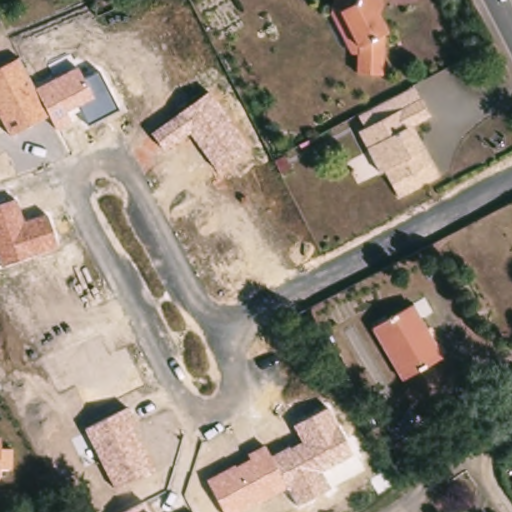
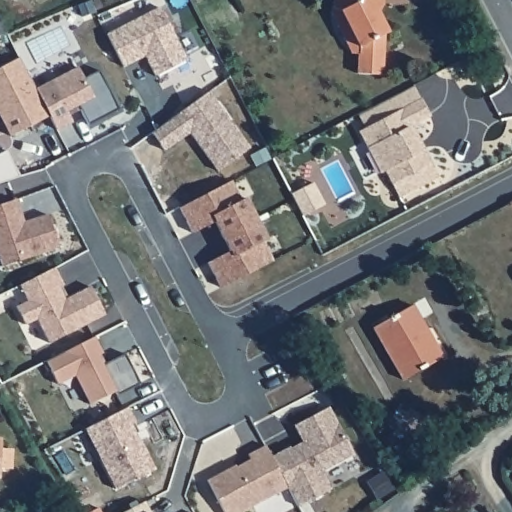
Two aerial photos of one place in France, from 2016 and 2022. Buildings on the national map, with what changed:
unchanged [(326,17),(329,12),(332,0),(376,0),(377,1),(378,4),(379,7),(377,11),(372,18),(385,40),(381,42),(378,82),(355,79),(358,59),(350,59),(326,17)]
new [(166,8),(192,61),(161,77),(151,56),(129,67),(113,34),(166,8)]
unchanged [(4,39),(0,39),(0,31),(4,39)]
unchanged [(89,123),(80,107),(65,113),(70,123),(56,129),(49,115),(10,134),(0,116),(0,67),(20,57),(37,89),(77,68),(85,81),(100,73),(119,110),(89,123)]
unchanged [(190,134),(165,152),(149,133),(209,90),(252,149),(216,169),(190,134)]
unchanged [(425,121),(408,130),(419,151),(435,182),(394,202),(380,173),(375,177),(354,135),(416,103),(425,121)]
new [(232,182),(242,201),(246,199),(268,240),(263,243),(273,262),(221,289),(208,264),(230,252),(215,223),(192,234),(180,209),(232,182)]
unchanged [(22,222),(46,216),(56,247),(1,267),(0,264),(0,204),(15,199),(22,222)]
new [(28,302),(20,286),(55,269),(64,286),(59,288),(65,301),(90,288),(105,316),(49,344),(37,320),(25,326),(16,308),(28,302)]
unchanged [(408,309),(430,349),(436,361),(398,384),(368,331),(398,315),(408,309)]
new [(99,337),(107,353),(102,355),(107,365),(130,353),(145,384),(122,396),(120,391),(94,404),(80,375),(62,384),(51,361),(99,337)]
unchanged [(134,421),(127,425),(151,468),(113,489),(82,430),(127,406),(134,421)]
unchanged [(395,431),(399,434),(414,407),(428,417),(429,415),(438,421),(429,439),(432,441),(426,451),(418,446),(413,455),(389,440),(395,431)]
unchanged [(320,475),(328,488),(295,504),(286,488),(238,512),(223,512),(206,481),(233,466),(234,468),(249,461),(247,454),(263,445),(271,457),(300,442),(293,426),(327,409),(349,459),(320,475)]
unchanged [(15,448),(14,473),(0,472),(0,447),(15,448)]
unchanged [(123,512),(147,501),(151,512),(123,512)]

